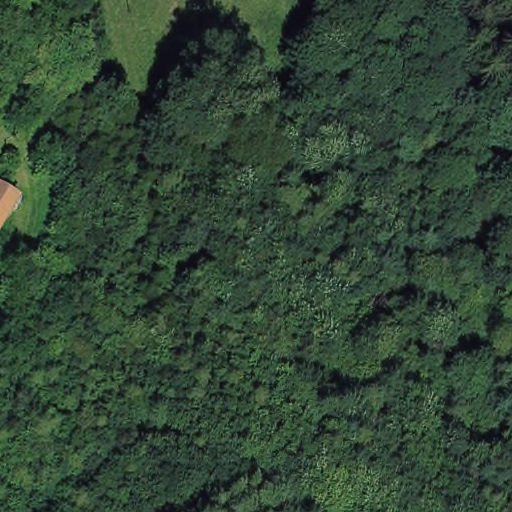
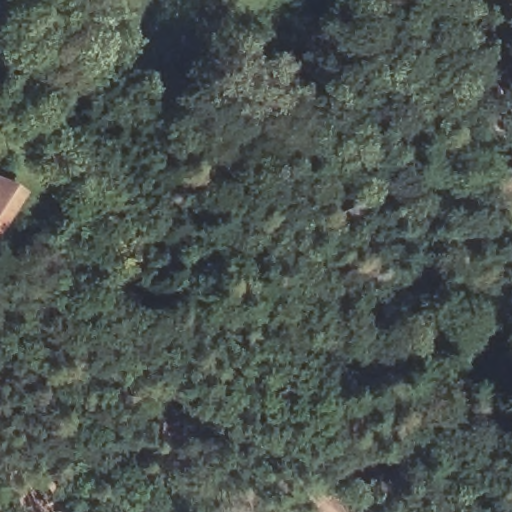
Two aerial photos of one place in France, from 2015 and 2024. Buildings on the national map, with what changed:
unchanged [(25,184),(0,231),(0,173),(25,184)]

